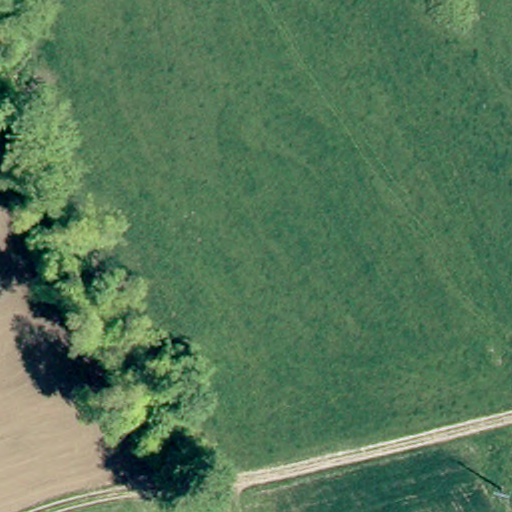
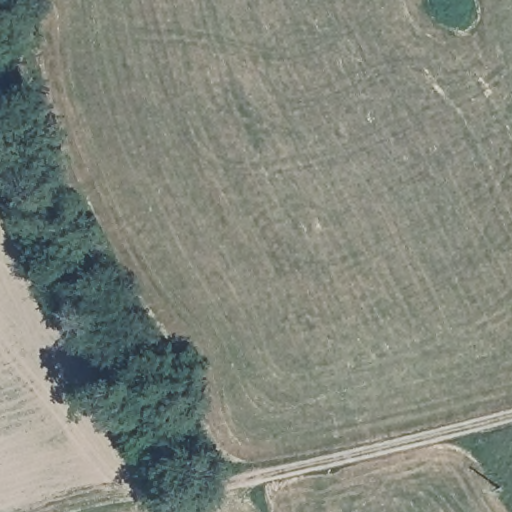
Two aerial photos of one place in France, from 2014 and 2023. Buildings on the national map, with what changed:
unchanged [(451,0),(456,8),(442,16),(436,1),(438,0),(451,0)]

